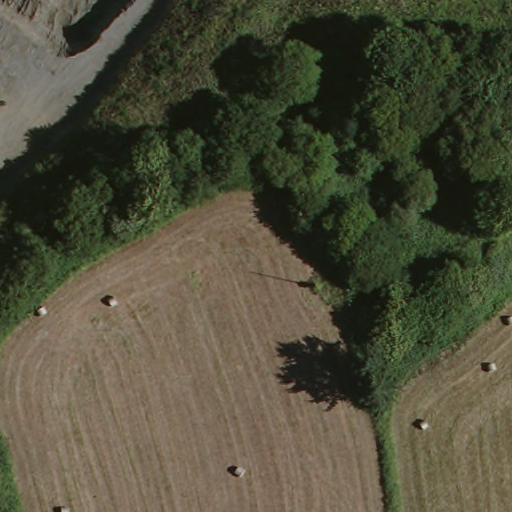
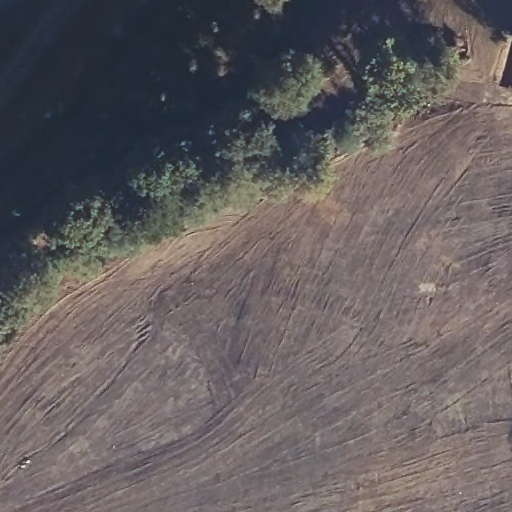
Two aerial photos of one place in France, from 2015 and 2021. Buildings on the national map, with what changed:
unchanged [(511,231),(512,234),(512,260),(431,297),(420,275),(444,264),(511,231)]

